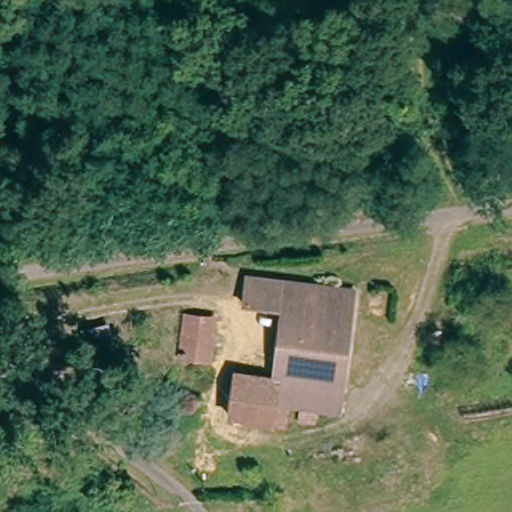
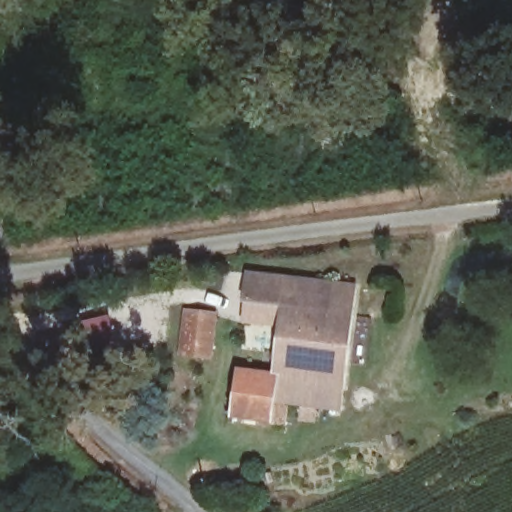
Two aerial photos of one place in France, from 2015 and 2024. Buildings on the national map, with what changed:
unchanged [(346,282),(330,408),(309,406),(306,420),(294,418),(295,406),(282,406),(281,422),(227,417),(230,372),(270,374),(273,306),(235,302),(237,274),(346,282)]
unchanged [(209,355),(180,352),(182,312),(211,313),(209,355)]

